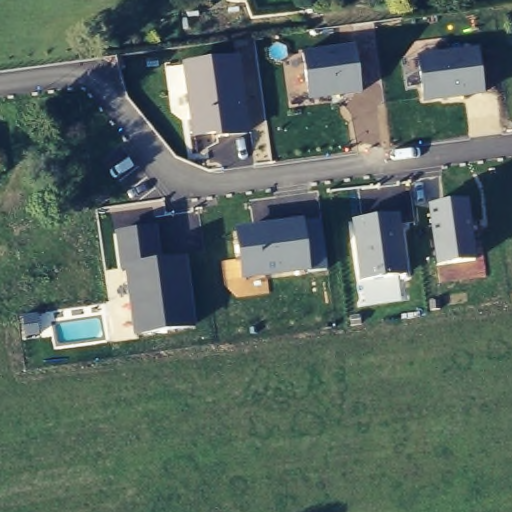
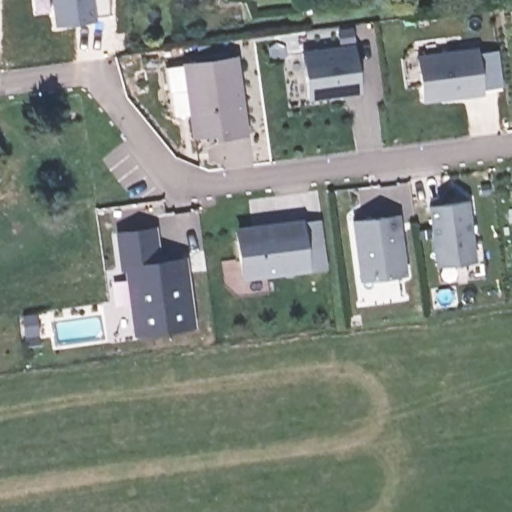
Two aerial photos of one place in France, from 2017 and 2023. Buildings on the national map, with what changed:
new [(94,16),(94,19),(58,24),(54,0),(110,0),(111,14),(94,16)]
unchanged [(303,53),(356,44),(363,94),(310,101),(303,53)]
unchanged [(417,57),(481,49),(486,94),(423,103),(417,57)]
unchanged [(183,64),(240,55),(250,134),(216,140),(216,135),(193,138),(183,64)]
unchanged [(428,205),(469,199),(478,260),(437,267),(428,205)]
unchanged [(353,219),(400,213),(408,274),(362,283),(353,219)]
unchanged [(235,229),(304,220),(320,220),(328,270),(310,272),(242,280),(235,229)]
unchanged [(125,269),(121,269),(116,232),(157,226),(162,260),(186,257),(195,327),(135,337),(125,269)]

